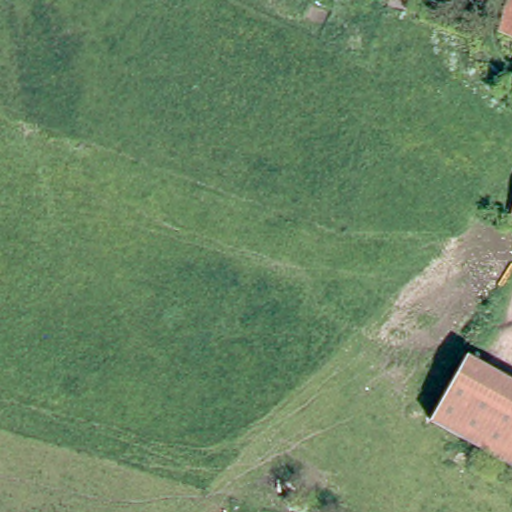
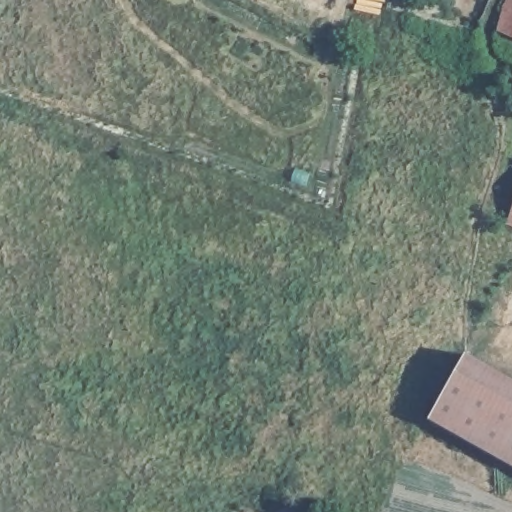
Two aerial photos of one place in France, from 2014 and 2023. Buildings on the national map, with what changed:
unchanged [(505,35),(502,16),(509,0),(512,0),(512,37),(505,35)]
unchanged [(507,230),(512,213),(512,231),(507,230)]
unchanged [(512,381),(512,465),(432,418),(470,356),(512,381)]

